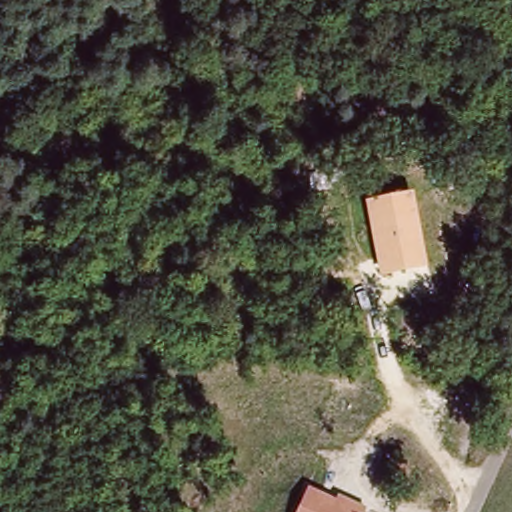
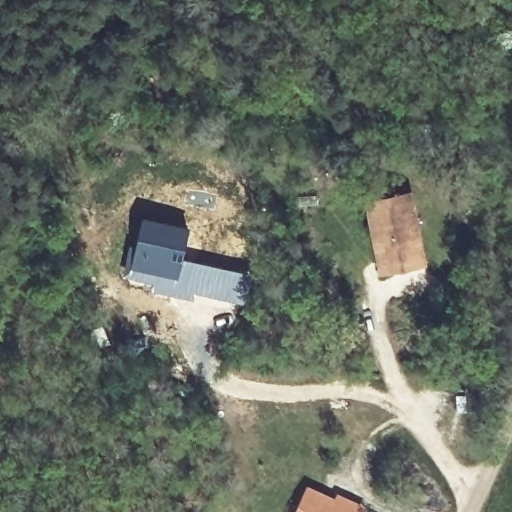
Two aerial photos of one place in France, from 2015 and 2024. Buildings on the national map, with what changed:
unchanged [(428,265),(381,276),(366,200),(413,191),(428,265)]
new [(141,216),(189,226),(184,257),(253,274),(244,305),(195,295),(194,301),(151,292),(152,285),(125,279),(141,216)]
unchanged [(368,505),(364,512),(296,512),(309,486),(338,499),(339,493),(368,505)]

